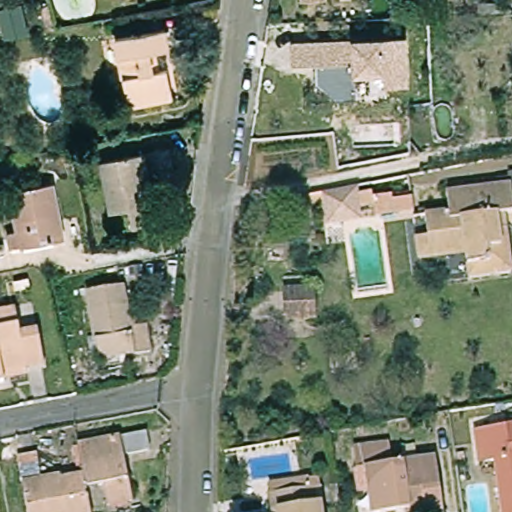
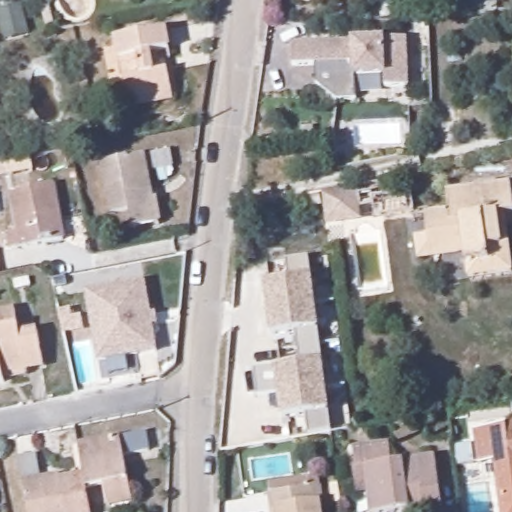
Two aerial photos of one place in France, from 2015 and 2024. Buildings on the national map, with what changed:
unchanged [(305,6),(304,0),(327,0),(328,5),(305,6)]
unchanged [(480,14),(479,3),(496,1),(497,13),(480,14)]
unchanged [(125,105),(124,98),(112,37),(161,28),(165,47),(147,51),(150,70),(165,68),(168,90),(170,96),(125,105)]
unchanged [(352,39),(352,40),(384,39),(407,39),(410,86),(385,87),(385,76),(354,78),(356,101),(338,101),(317,84),(317,65),(292,65),(292,42),(352,39)]
unchanged [(273,144),(275,161),(258,164),(255,147),(273,144)]
unchanged [(147,189),(148,197),(159,195),(164,220),(133,226),(129,206),(113,209),(104,161),(148,153),(174,148),(177,164),(151,169),(155,187),(147,189)]
unchanged [(11,173),(0,175),(0,162),(10,160),(11,173)]
unchanged [(512,194),(512,210),(504,212),(511,270),(469,274),(467,250),(419,256),(417,235),(427,234),(424,211),(449,209),(446,189),(511,183),(512,194)]
unchanged [(64,242),(13,251),(10,235),(20,233),(12,193),(54,186),(64,242)]
new [(325,226),(322,193),(357,186),(358,193),(370,190),(371,197),(392,194),(393,199),(412,196),(414,210),(375,216),(373,203),(360,205),(361,220),(325,226)]
demolished [(370,190),(371,197),(392,194),(393,199),(412,196),(414,210),(375,216),(373,203),(360,205),(358,193),(370,190)]
new [(312,277),(320,330),(317,330),(322,361),(323,361),(331,412),(328,412),(331,432),(308,436),(305,416),(281,419),(277,393),(258,397),(255,371),(274,368),(299,365),(295,334),(271,336),(264,284),(287,280),(285,260),(308,257),(312,277)]
demolished [(315,324),(276,326),(277,291),(317,280),(315,324)]
unchanged [(130,329),(145,326),(150,354),(99,363),(86,295),(122,287),(130,329)]
unchanged [(3,378),(3,381),(0,381),(0,308),(14,306),(19,330),(36,327),(45,366),(25,370),(26,374),(3,378)]
unchanged [(493,459),(477,461),(473,427),(512,423),(512,512),(500,512),(493,459)]
unchanged [(142,435),(145,453),(119,459),(120,466),(127,503),(112,505),(108,485),(82,490),(80,478),(75,448),(116,440),(142,435)]
unchanged [(399,509),(378,512),(369,512),(363,466),(355,467),(352,444),(389,440),(392,463),(434,456),(441,504),(442,512),(399,512),(399,509)]
unchanged [(19,479),(14,453),(33,449),(39,475),(55,472),(59,490),(66,488),(65,481),(80,478),(82,490),(86,512),(24,512),(19,479)]
unchanged [(325,488),(327,506),(319,507),(320,512),(272,512),(270,497),(325,488)]

